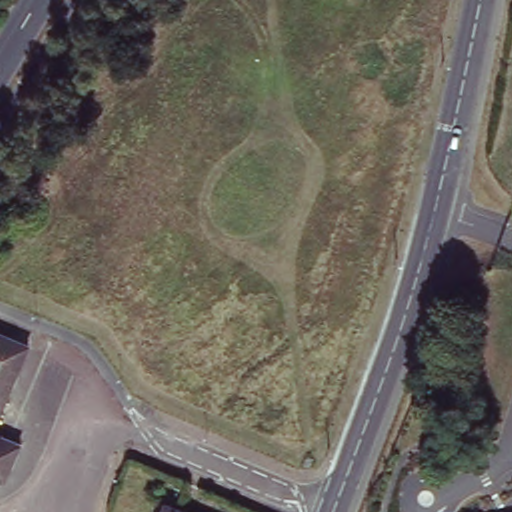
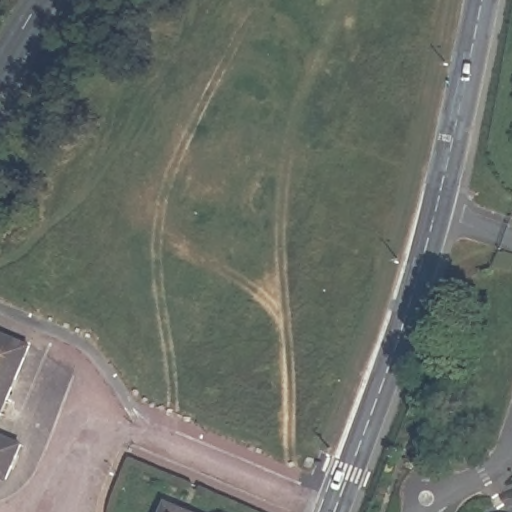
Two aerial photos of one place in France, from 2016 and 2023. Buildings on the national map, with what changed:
unchanged [(28,347),(0,413),(0,335),(28,347)]
unchanged [(20,445),(5,479),(0,476),(0,436),(20,445)]
unchanged [(167,501),(194,512),(162,512),(167,501)]

